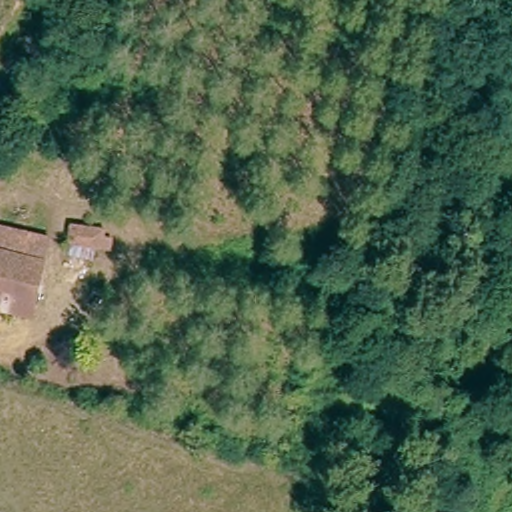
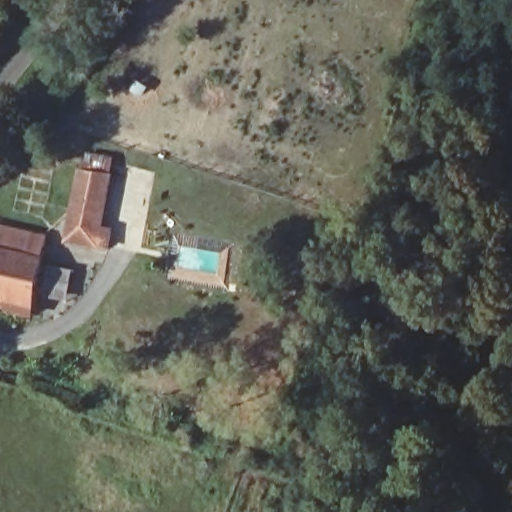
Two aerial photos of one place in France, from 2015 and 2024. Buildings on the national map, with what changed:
new [(95,171),(98,154),(119,159),(116,175),(106,227),(116,229),(113,251),(68,244),(82,169),(95,171)]
demolished [(85,227),(108,234),(106,241),(119,245),(115,257),(78,247),(85,227)]
unchanged [(0,312),(0,228),(51,242),(26,320),(0,312)]

